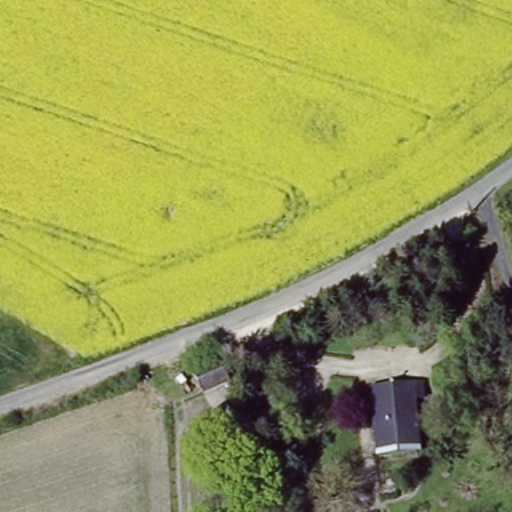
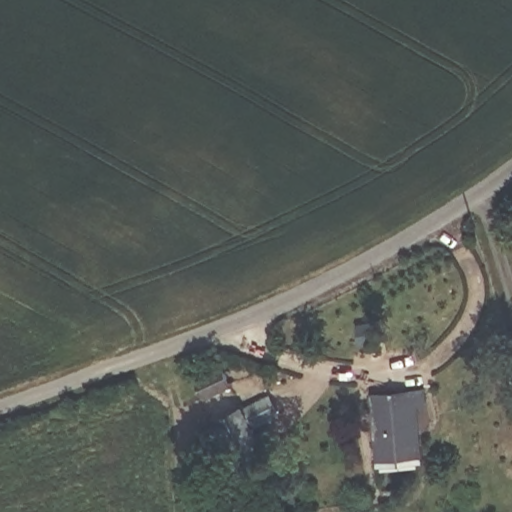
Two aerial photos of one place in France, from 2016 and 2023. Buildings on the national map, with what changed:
unchanged [(225,385),(200,398),(190,381),(216,368),(225,385)]
unchanged [(385,450),(385,439),(381,389),(416,386),(420,438),(421,449),(385,450)]
unchanged [(272,464),(247,478),(238,460),(218,424),(245,410),(272,464)]

